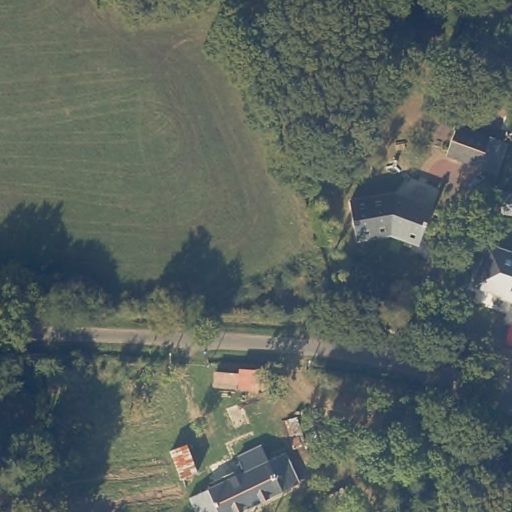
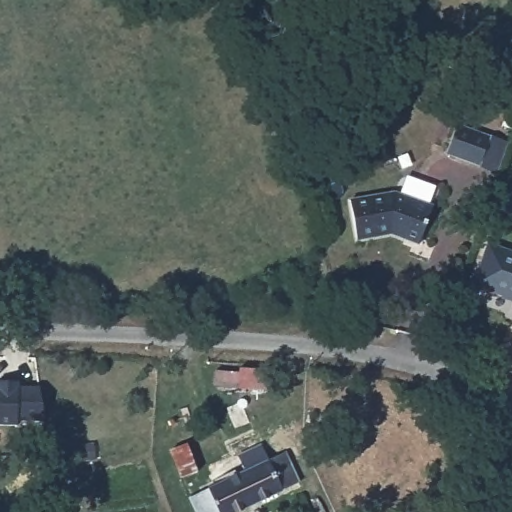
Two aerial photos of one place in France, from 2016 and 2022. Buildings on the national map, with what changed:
unchanged [(443,1),(439,0),(444,0),(443,1)]
unchanged [(471,60),(463,75),(439,63),(446,49),(471,60)]
unchanged [(495,73),(512,79),(512,92),(490,85),(495,73)]
unchanged [(493,132),(479,163),(447,148),(461,116),(493,132)]
unchanged [(405,236),(395,230),(363,236),(356,196),(394,190),(405,190),(438,206),(425,234),(420,243),(405,236)]
unchanged [(511,308),(467,293),(482,252),(512,262),(512,319),(508,318),(511,308)]
unchanged [(236,372),(237,366),(266,370),(265,393),(213,390),(215,373),(236,372)]
new [(37,421),(17,420),(17,425),(0,425),(0,381),(20,382),(20,387),(39,388),(37,421)]
unchanged [(305,493),(262,512),(196,512),(194,506),(216,497),(209,476),(223,469),(233,488),(249,481),(242,465),(237,454),(261,444),(266,455),(273,470),(291,463),(305,493)]
unchanged [(201,469),(179,476),(175,458),(197,452),(201,469)]

